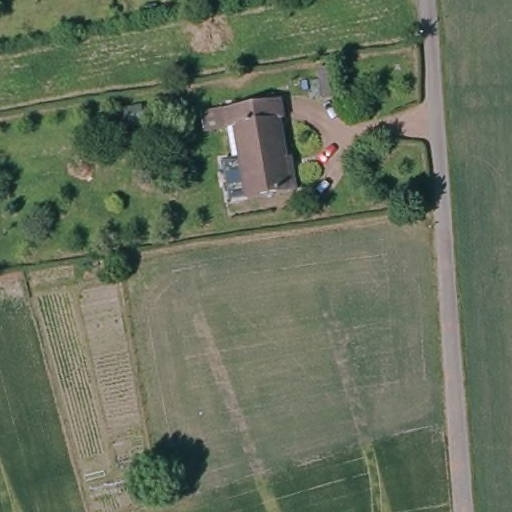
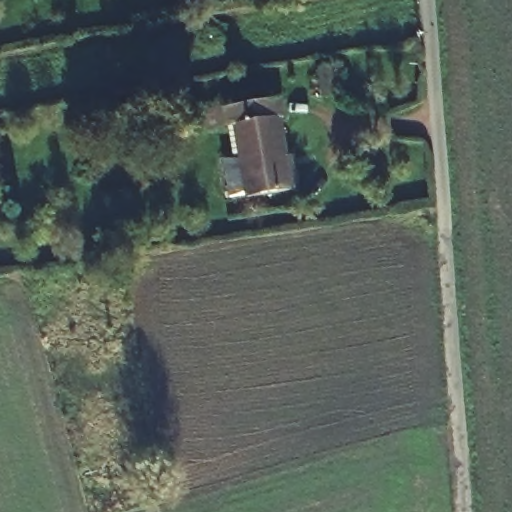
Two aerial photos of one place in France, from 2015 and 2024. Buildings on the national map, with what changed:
unchanged [(279,97),(283,117),(278,117),(285,157),(290,156),(296,188),(249,196),(236,125),(226,127),(222,107),(279,97)]

